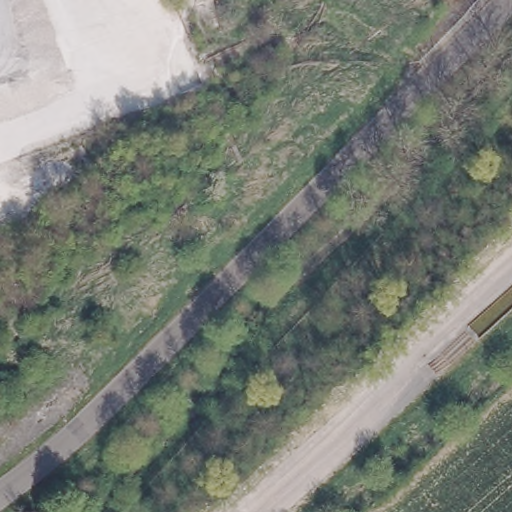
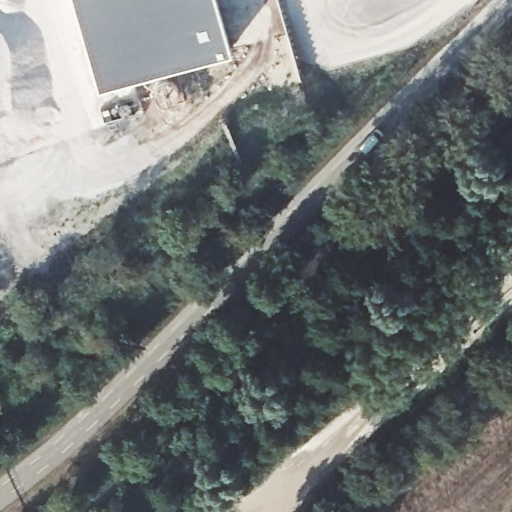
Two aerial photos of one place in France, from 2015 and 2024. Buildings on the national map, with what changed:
new [(231,52),(98,88),(73,0),(216,0),(231,52)]

